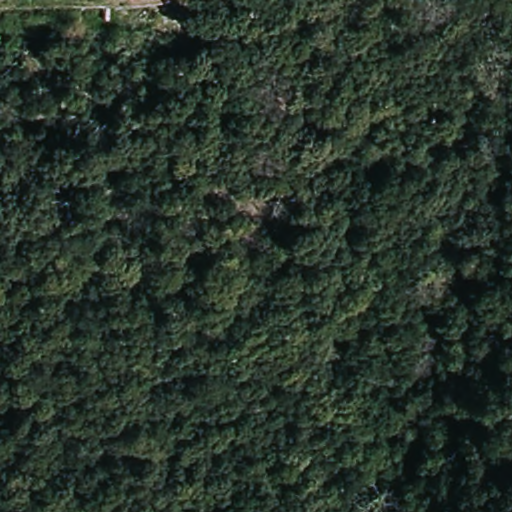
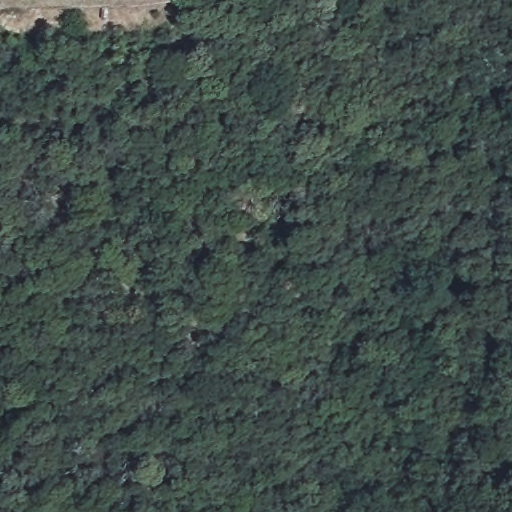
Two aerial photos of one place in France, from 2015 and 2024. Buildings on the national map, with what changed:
[]

